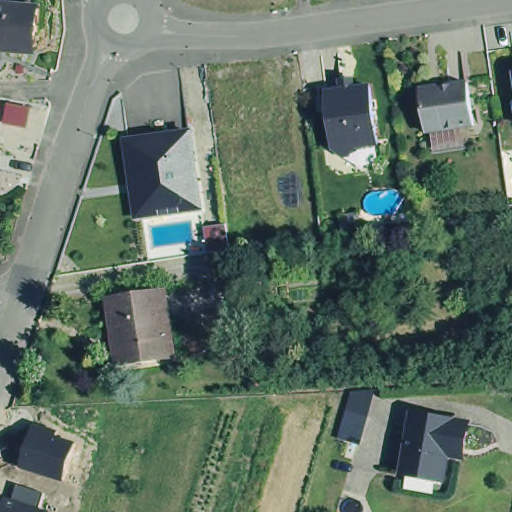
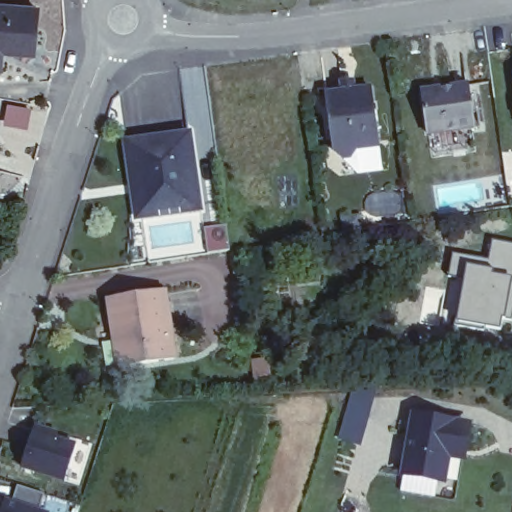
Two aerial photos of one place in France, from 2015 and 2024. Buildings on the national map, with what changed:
unchanged [(0,0),(42,0),(41,39),(9,37),(8,53),(0,53),(0,0)]
unchanged [(335,93),(345,92),(344,82),(354,80),(356,90),(373,88),(381,145),(360,148),(354,156),(344,157),(336,151),(328,94),(335,93)]
unchanged [(470,84),(476,127),(429,134),(423,91),(470,84)]
unchanged [(202,209),(187,210),(140,217),(135,185),(129,142),(192,133),(196,164),(197,176),(202,209)]
unchanged [(228,225),(232,251),(210,254),(206,229),(228,225)]
new [(452,252),(487,257),(491,238),(512,243),(512,318),(512,321),(504,319),(501,331),(454,323),(462,280),(447,276),(452,252)]
unchanged [(117,337),(111,294),(167,286),(177,354),(130,361),(122,362),(117,337)]
unchanged [(340,439),(353,389),(378,395),(364,446),(340,439)]
unchanged [(444,451),(440,476),(400,469),(411,410),(465,420),(461,443),(459,453),(444,451)]
unchanged [(66,483),(20,467),(35,423),(62,431),(61,438),(78,444),(66,483)]
unchanged [(0,512),(0,511),(5,496),(14,498),(19,486),(45,494),(42,508),(53,511),(53,512),(0,512)]

